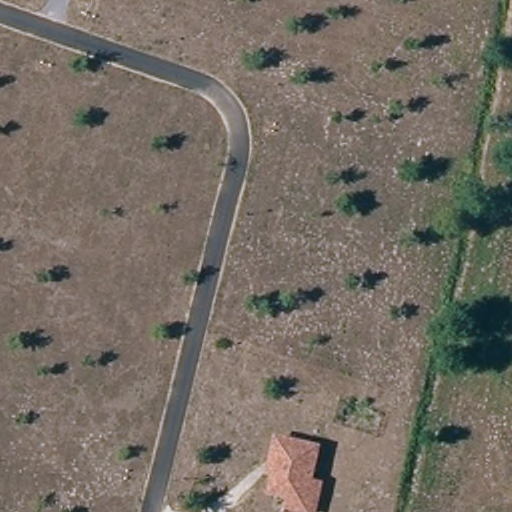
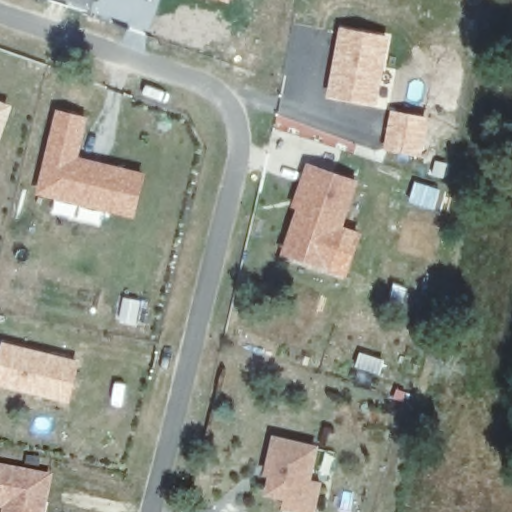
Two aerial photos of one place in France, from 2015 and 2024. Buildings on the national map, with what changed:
new [(222,0),(230,0),(229,3),(222,0)]
new [(391,36),(380,106),(327,98),(340,25),(391,36)]
new [(12,107),(0,140),(0,102),(12,107)]
new [(90,117),(79,155),(147,173),(136,218),(36,193),(57,109),(90,117)]
new [(390,109),(429,116),(422,155),(382,149),(390,109)]
new [(358,180),(328,269),(281,252),(298,203),(292,200),(307,161),(358,180)]
new [(413,180),(440,189),(433,210),(407,202),(413,180)]
new [(80,361),(71,402),(0,385),(0,351),(2,340),(80,361)]
unchanged [(322,482),(315,512),(294,512),(282,509),(285,499),(265,495),(267,477),(262,476),(272,434),(318,444),(312,479),(322,482)]
new [(54,475),(47,512),(1,512),(2,508),(0,508),(0,464),(54,475)]

